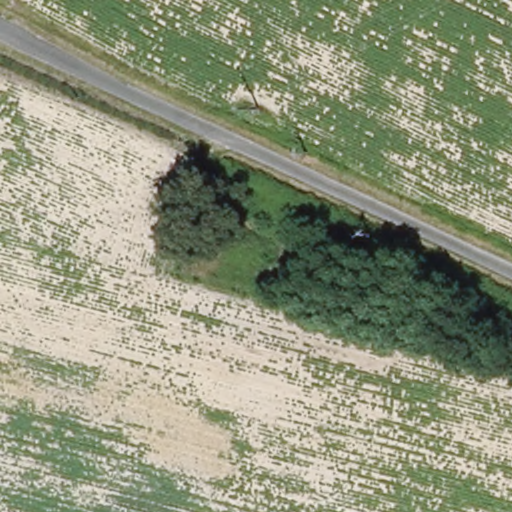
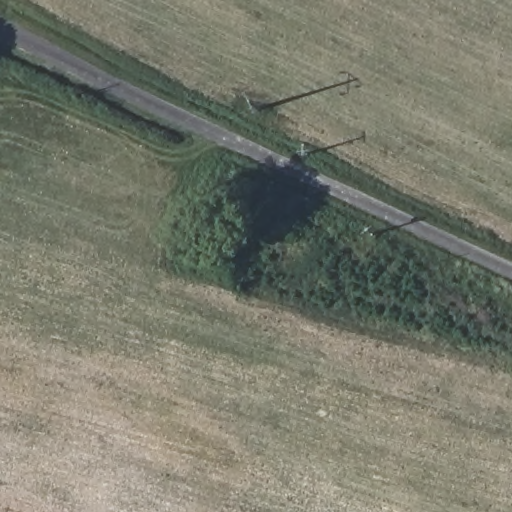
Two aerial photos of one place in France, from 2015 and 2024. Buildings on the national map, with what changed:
[]

